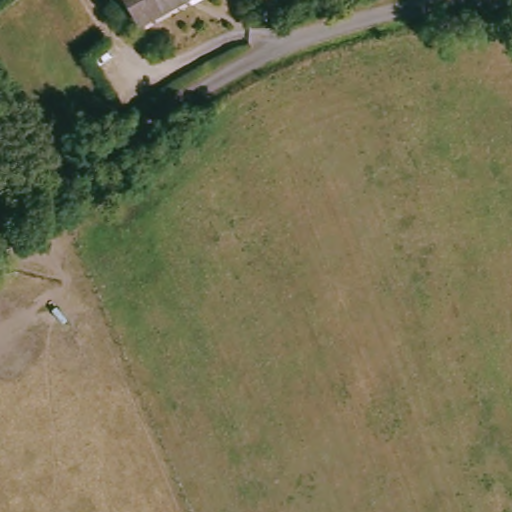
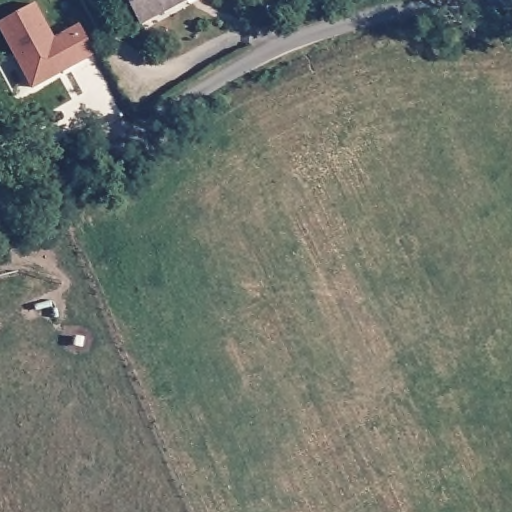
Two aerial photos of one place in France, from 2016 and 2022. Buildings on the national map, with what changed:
unchanged [(184,4),(146,27),(130,0),(181,0),(184,4)]
new [(54,38),(80,25),(95,55),(33,89),(0,25),(0,24),(36,5),(54,38)]

